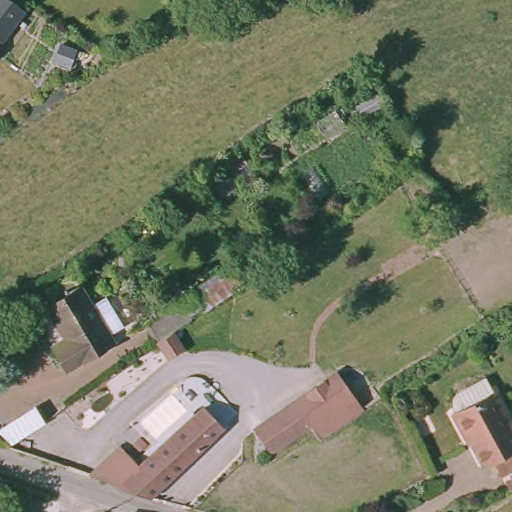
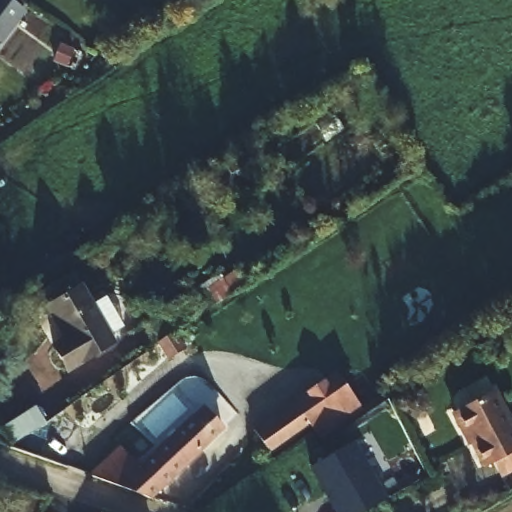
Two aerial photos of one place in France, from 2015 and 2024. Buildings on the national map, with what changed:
unchanged [(25,7),(0,38),(0,0),(17,0),(25,7)]
unchanged [(340,106),(350,121),(330,134),(320,119),(340,106)]
unchanged [(245,151),(251,161),(216,183),(211,173),(245,151)]
unchanged [(125,224),(133,236),(109,253),(100,241),(125,224)]
unchanged [(193,287),(197,293),(226,275),(239,266),(248,281),(236,289),(160,339),(145,316),(193,287)]
unchanged [(66,371),(52,346),(65,339),(45,306),(78,286),(90,305),(105,296),(123,327),(109,336),(113,343),(66,371)]
unchanged [(316,423),(300,397),(345,370),(362,398),(370,409),(325,437),(316,423)]
unchanged [(490,461),(482,466),(470,445),(475,443),(469,433),(464,436),(452,414),(450,402),(454,392),(483,376),(491,392),(512,429),(512,471),(500,478),(490,461)]
unchanged [(55,413),(49,403),(62,393),(70,403),(55,413)]
unchanged [(289,440),(275,449),(258,423),(300,397),(316,423),(289,440)]
new [(40,399),(51,415),(19,439),(7,423),(40,399)]
unchanged [(122,486),(206,408),(219,421),(222,417),(230,426),(154,498),(122,486)]
new [(355,441),(388,498),(365,512),(335,512),(310,468),(355,441)]
unchanged [(122,486),(85,473),(118,446),(140,469),(122,486)]
unchanged [(501,484),(512,478),(512,494),(508,496),(501,484)]

